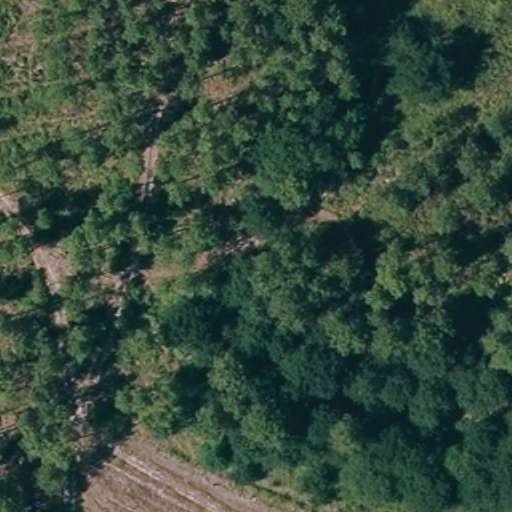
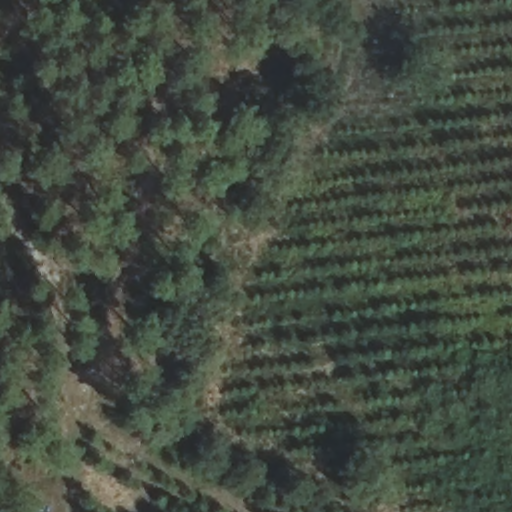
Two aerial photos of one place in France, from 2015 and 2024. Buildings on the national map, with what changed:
[]

